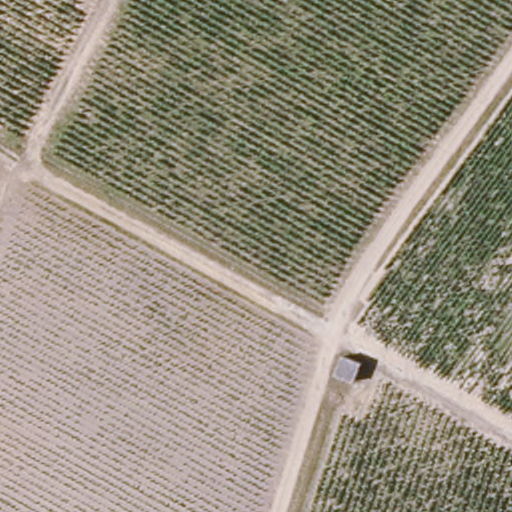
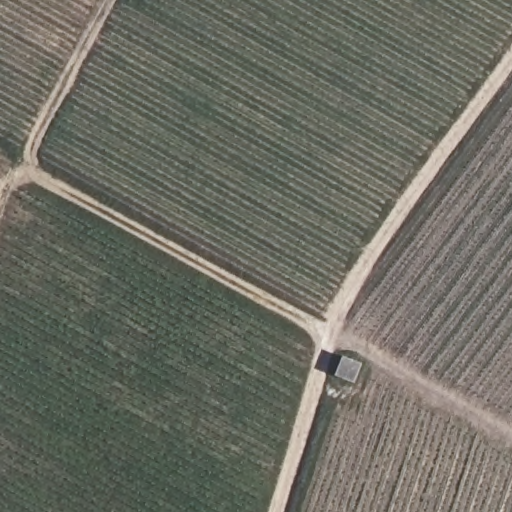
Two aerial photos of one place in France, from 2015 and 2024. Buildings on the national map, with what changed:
unchanged [(339,362),(357,369),(353,386),(333,379),(339,362)]

